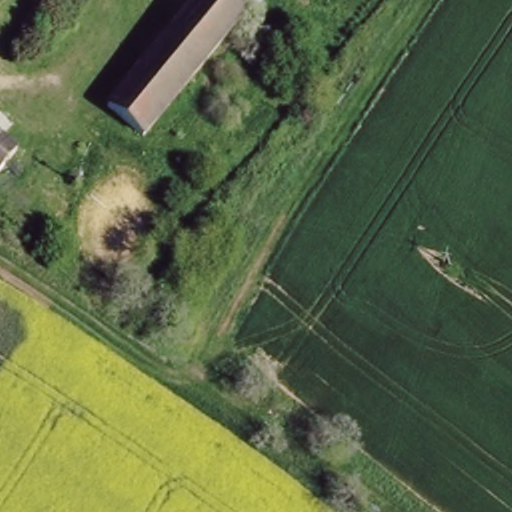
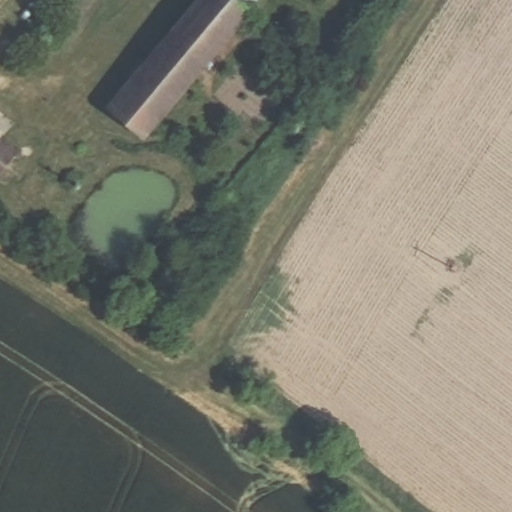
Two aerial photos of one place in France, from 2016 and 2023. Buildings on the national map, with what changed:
unchanged [(149,134),(107,105),(195,0),(256,0),(149,134)]
unchanged [(0,174),(0,130),(22,148),(0,174)]

